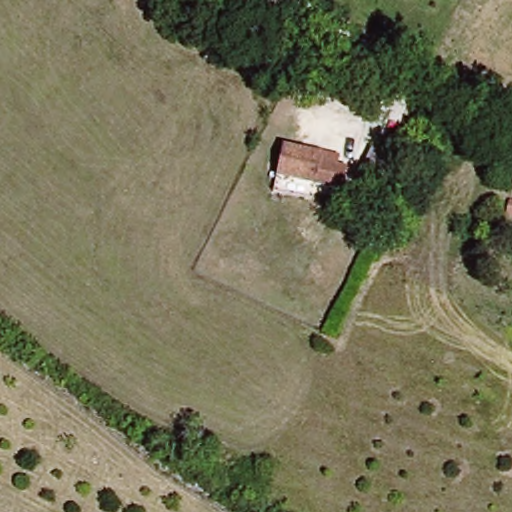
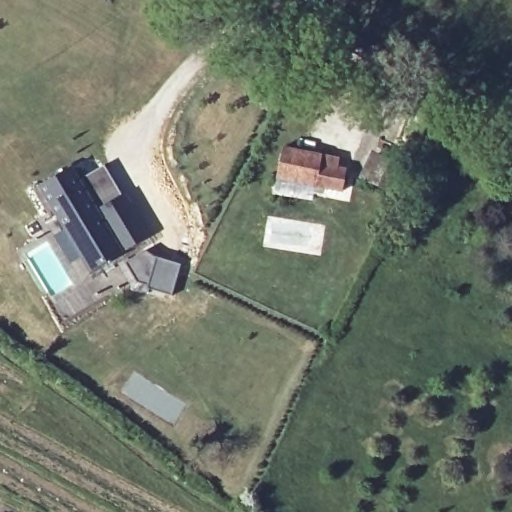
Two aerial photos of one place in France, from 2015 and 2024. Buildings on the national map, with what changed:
unchanged [(272,185),(287,143),(340,154),(345,172),(338,191),(316,183),(299,194),(272,185)]
new [(37,184),(71,164),(80,176),(103,162),(121,195),(126,193),(151,234),(88,271),(37,184)]

